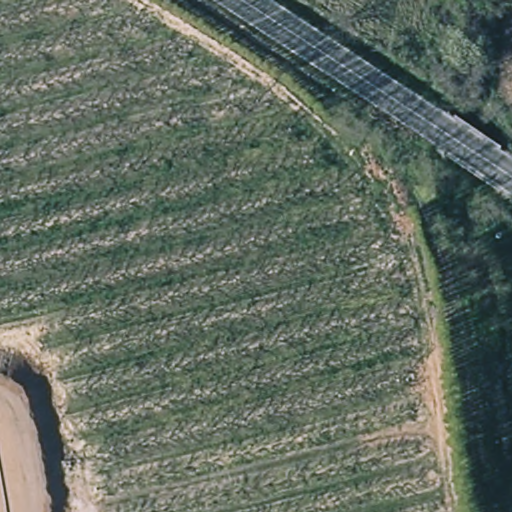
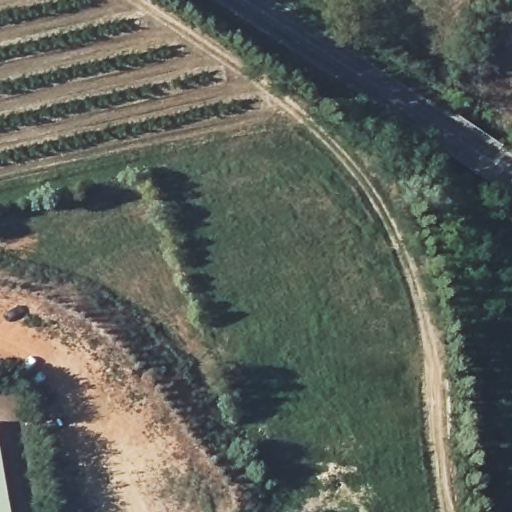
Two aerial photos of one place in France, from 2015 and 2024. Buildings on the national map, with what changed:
new [(10,512),(0,512),(0,458),(10,512)]

